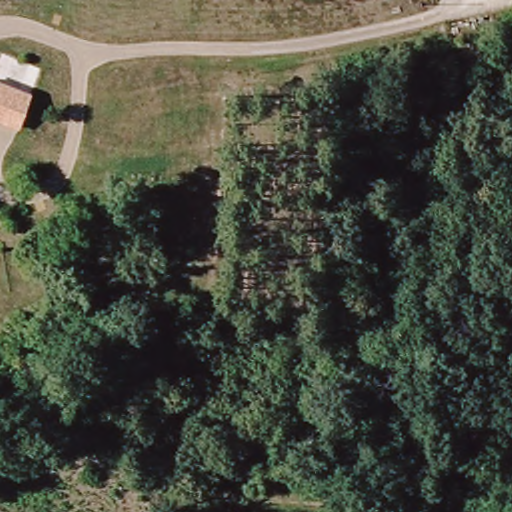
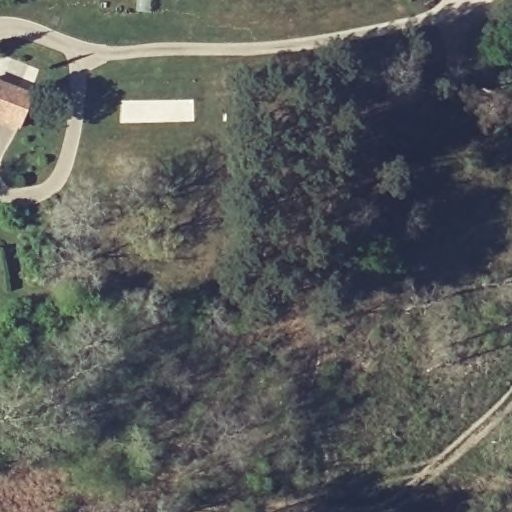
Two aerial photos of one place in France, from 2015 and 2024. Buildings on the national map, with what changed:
unchanged [(30,94),(19,130),(0,124),(0,82),(30,94)]

